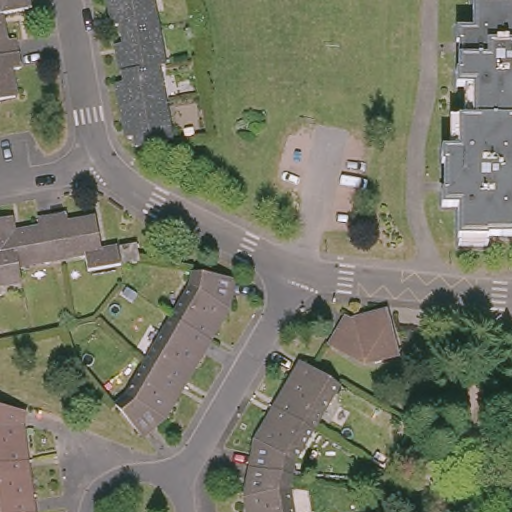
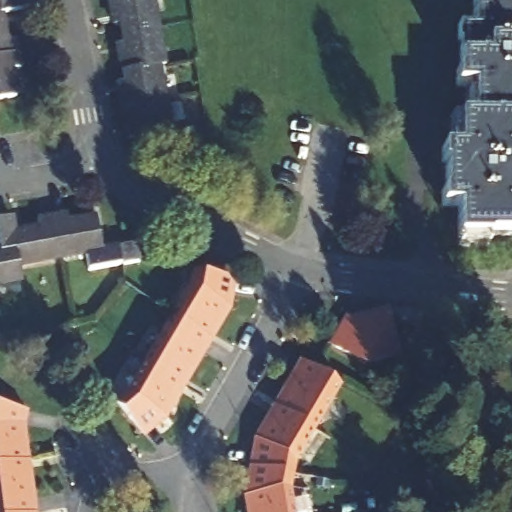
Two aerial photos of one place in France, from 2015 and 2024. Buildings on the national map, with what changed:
unchanged [(0,9),(0,0),(29,0),(30,4),(0,9)]
unchanged [(150,21),(125,27),(121,9),(115,9),(113,0),(158,0),(162,19),(150,21)]
unchanged [(484,238),(453,237),(453,205),(436,205),(437,189),(440,189),(440,162),(437,162),(437,147),(452,147),(453,117),(467,117),(467,85),(449,84),(449,69),(453,69),(453,42),(450,42),(450,25),(466,25),(467,0),(512,0),(512,235),(484,234),(484,238)]
unchanged [(5,36),(15,34),(18,50),(21,62),(10,64),(16,93),(0,96),(0,9),(5,36)]
unchanged [(169,57),(164,58),(171,97),(177,132),(177,134),(175,134),(140,141),(140,140),(137,122),(131,123),(127,106),(124,86),(129,85),(125,66),(121,46),(128,45),(125,27),(150,21),(162,19),(169,57)]
unchanged [(80,247),(57,252),(16,260),(19,274),(0,278),(0,213),(7,212),(10,226),(34,221),(33,212),(47,208),(61,205),(64,215),(90,210),(97,244),(113,241),(127,238),(130,256),(117,259),(83,265),(80,247)]
unchanged [(190,311),(187,307),(197,289),(199,278),(234,283),(232,310),(235,312),(228,326),(222,326),(213,345),(182,327),(190,311)]
unchanged [(395,353),(360,359),(326,338),(345,303),(354,309),(387,303),(395,353)]
unchanged [(162,359),(160,354),(170,338),(174,339),(182,327),(213,345),(215,346),(202,371),(197,368),(185,390),(155,372),(162,359)]
unchanged [(287,377),(284,375),(294,357),(327,377),(322,388),(325,390),(317,405),(312,404),(310,406),(301,421),(272,403),(287,377)]
unchanged [(185,390),(175,410),(177,415),(170,426),(167,423),(143,442),(120,411),(133,400),(140,386),(147,385),(155,372),(185,390)]
unchanged [(292,437),(295,442),(289,452),(287,466),(250,461),(254,436),(248,432),(254,422),(260,422),(272,403),(301,421),(292,437)]
unchanged [(30,417),(27,429),(29,442),(24,447),(27,469),(0,473),(0,409),(30,417)]
unchanged [(286,478),(289,496),(285,500),(287,512),(251,512),(250,499),(244,497),(243,484),(247,484),(250,461),(287,466),(286,478)]
unchanged [(30,489),(37,493),(39,512),(0,512),(0,473),(27,469),(30,489)]

